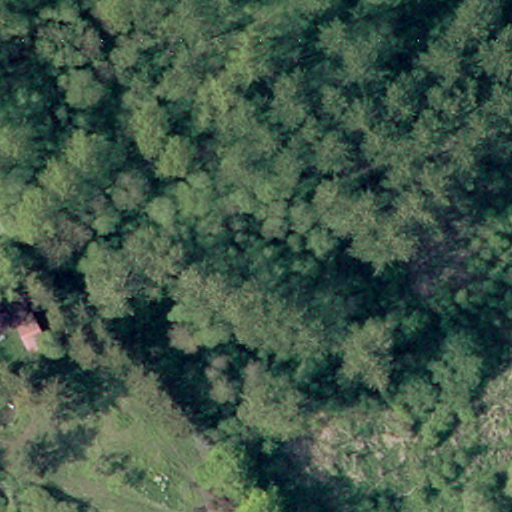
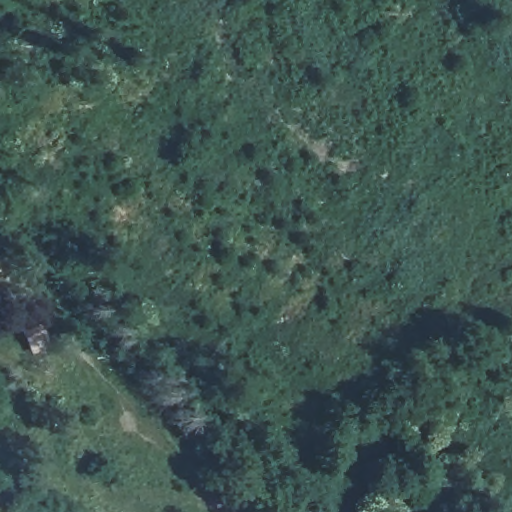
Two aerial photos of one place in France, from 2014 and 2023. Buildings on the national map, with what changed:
unchanged [(43,310),(60,347),(30,358),(18,325),(43,310)]

